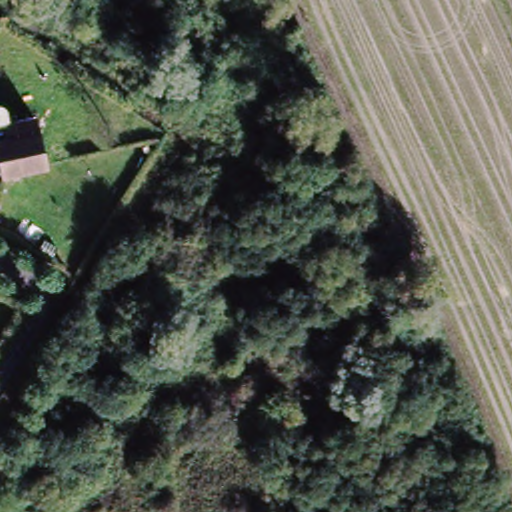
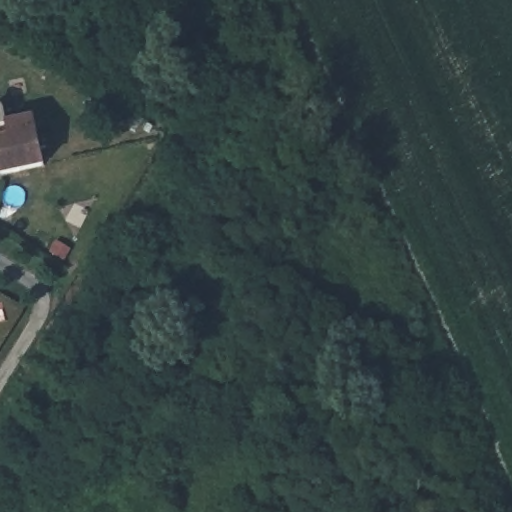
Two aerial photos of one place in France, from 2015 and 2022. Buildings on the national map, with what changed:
unchanged [(31,124),(42,167),(0,180),(0,131),(31,124)]

